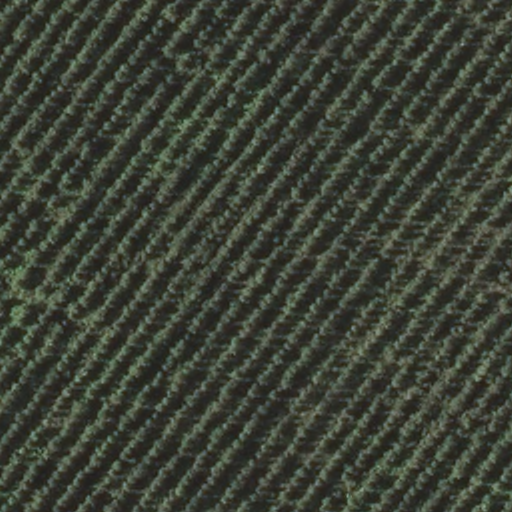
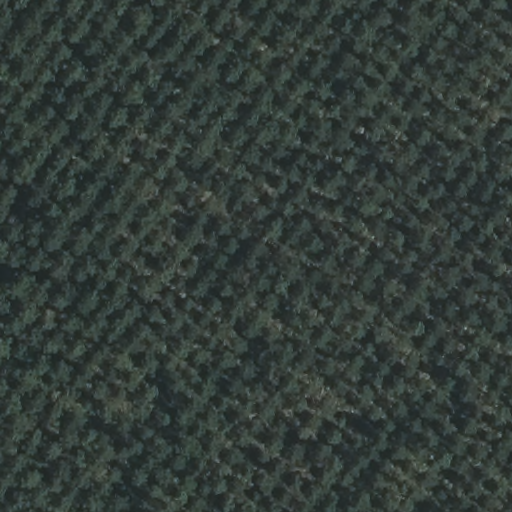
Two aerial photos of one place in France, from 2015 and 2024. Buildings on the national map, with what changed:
[]

